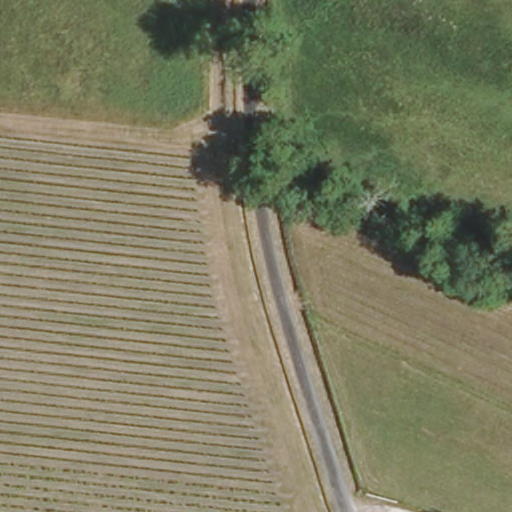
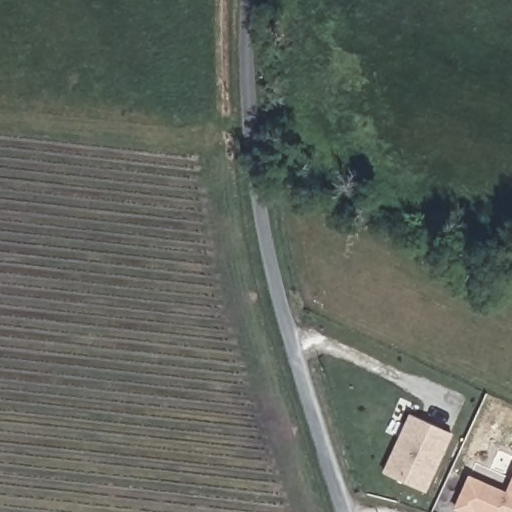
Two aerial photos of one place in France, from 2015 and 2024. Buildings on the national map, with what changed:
new [(453,433),(427,491),(387,473),(412,415),(453,433)]
new [(512,479),(512,512),(480,512),(472,508),(470,512),(455,505),(468,475),(506,492),(512,479)]

